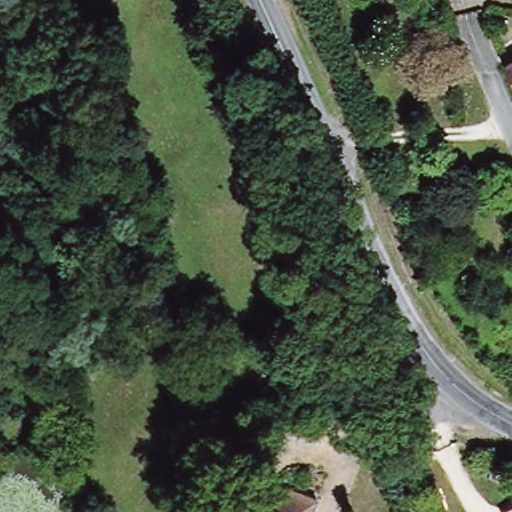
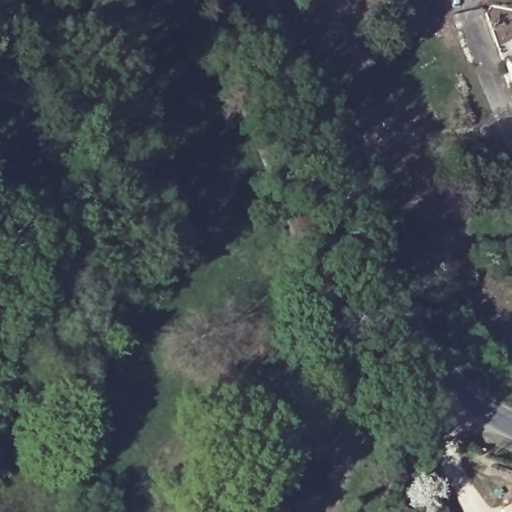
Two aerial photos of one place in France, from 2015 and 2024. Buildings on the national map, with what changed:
unchanged [(512,56),(512,79),(504,60),(512,56)]
unchanged [(310,512),(267,512),(276,490),(313,506),(310,512)]

